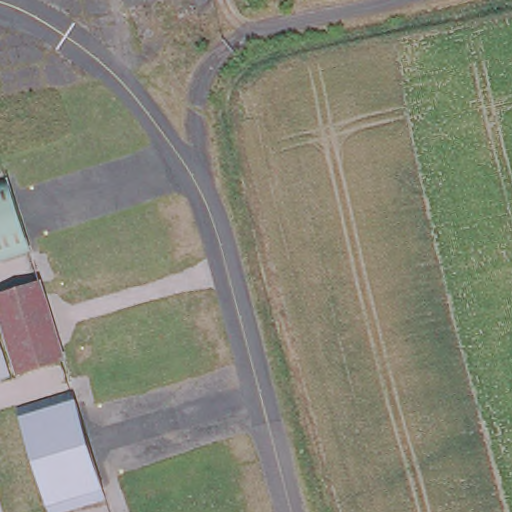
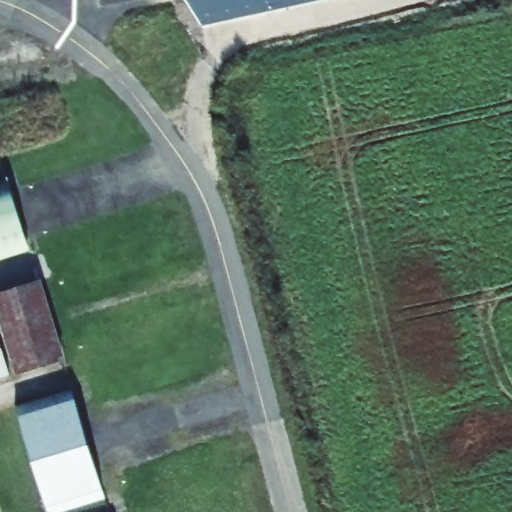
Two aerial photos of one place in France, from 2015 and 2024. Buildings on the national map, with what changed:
new [(187,0),(314,0),(202,25),(187,0)]
unchanged [(35,254),(0,265),(0,187),(12,183),(35,254)]
unchanged [(68,363),(21,376),(0,298),(45,284),(68,363)]
unchanged [(105,501),(68,512),(47,512),(16,409),(73,392),(105,501)]

